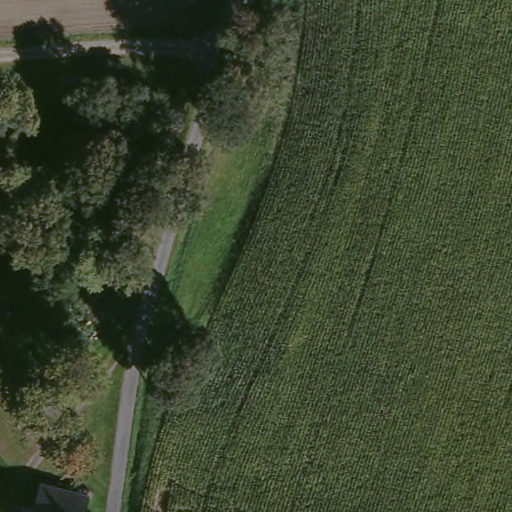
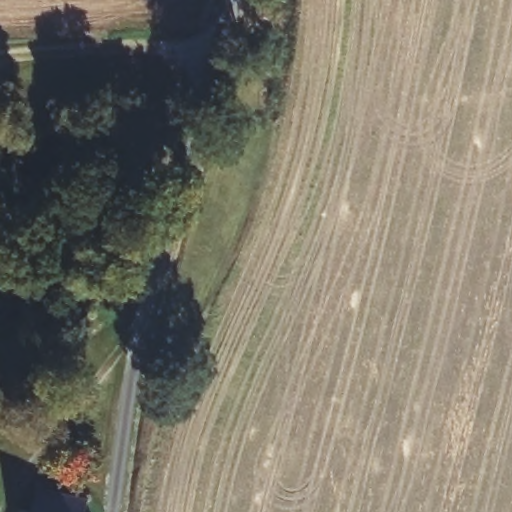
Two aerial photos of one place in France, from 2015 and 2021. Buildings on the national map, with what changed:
unchanged [(44,495),(94,506),(93,512),(41,512),(44,495)]

